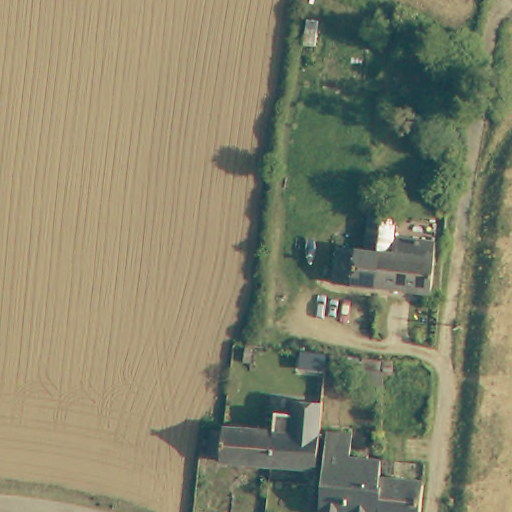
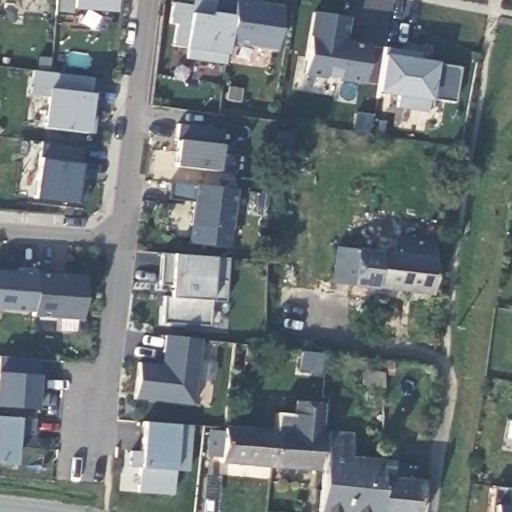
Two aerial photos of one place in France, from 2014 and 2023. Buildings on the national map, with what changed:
new [(114,12),(74,9),(72,15),(55,14),(55,0),(115,0),(114,12)]
new [(233,2),(231,15),(227,45),(226,54),(224,64),(187,58),(191,49),(186,48),(174,46),(177,24),(171,23),(173,2),(191,5),(193,0),(234,0),(233,2)]
new [(276,50),(227,45),(231,15),(233,2),(280,8),(276,50)]
new [(344,33),(338,32),(336,40),(368,45),(362,83),(304,73),(314,12),(346,17),(344,33)]
demolished [(435,53),(431,65),(407,58),(411,45),(435,53)]
new [(453,101),(429,98),(426,112),(396,107),(398,95),(378,92),(383,53),(384,46),(421,52),(420,59),(436,61),(436,64),(458,67),(453,101)]
new [(33,70),(91,77),(90,93),(88,114),(97,116),(94,133),(86,132),(42,127),(45,97),(30,96),(33,70)]
new [(220,144),(217,170),(175,166),(178,139),(177,124),(220,129),(220,144)]
new [(81,163),(79,179),(88,180),(84,205),(77,204),(36,199),(41,159),(43,143),(83,147),(81,163)]
new [(230,229),(189,224),(193,185),(235,189),(230,229)]
unchanged [(359,246),(368,247),(371,213),(396,215),(394,235),(436,240),(432,288),(380,284),(379,282),(375,282),(336,279),(340,245),(359,246)]
new [(225,301),(211,300),(209,325),(162,323),(163,296),(170,296),(171,285),(160,284),(161,253),(173,255),(212,257),(228,258),(225,301)]
new [(31,316),(32,312),(0,310),(0,269),(18,270),(18,266),(52,269),(53,273),(84,275),(81,319),(31,316)]
new [(138,362),(162,364),(166,334),(201,339),(194,405),(135,399),(138,362)]
unchanged [(321,372),(296,370),(297,353),(322,354),(321,372)]
new [(38,358),(36,392),(47,392),(46,409),(35,408),(0,406),(0,356),(38,358)]
unchanged [(390,377),(380,377),(374,377),(374,373),(367,372),(367,363),(381,363),(390,364),(390,377)]
unchanged [(277,409),(281,409),(294,411),(294,408),(295,398),(321,400),(318,465),(273,462),(275,428),(277,409)]
new [(33,434),(17,433),(15,465),(0,464),(0,416),(18,417),(34,419),(33,434)]
new [(188,471),(174,470),(172,494),(137,492),(140,467),(129,466),(130,451),(141,452),(143,422),(177,424),(191,425),(188,471)]
unchanged [(275,428),(273,462),(223,458),(224,452),(211,451),(213,428),(225,429),(225,424),(275,428)]
unchanged [(329,429),(354,432),(352,454),(383,457),(383,475),(382,512),(359,512),(322,508),(329,429)]
unchanged [(424,478),(421,512),(382,512),(383,475),(424,478)]
new [(512,489),(512,512),(490,512),(493,486),(512,489)]

